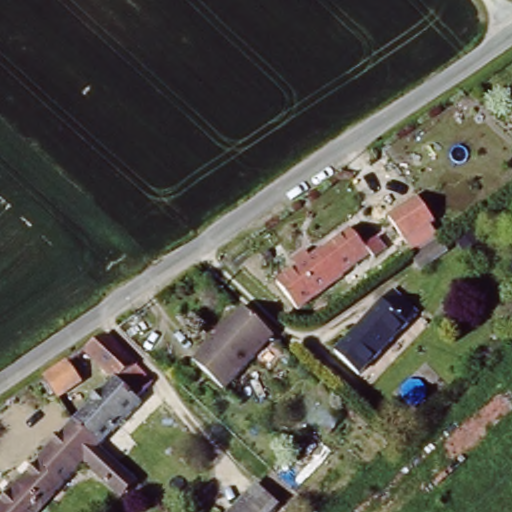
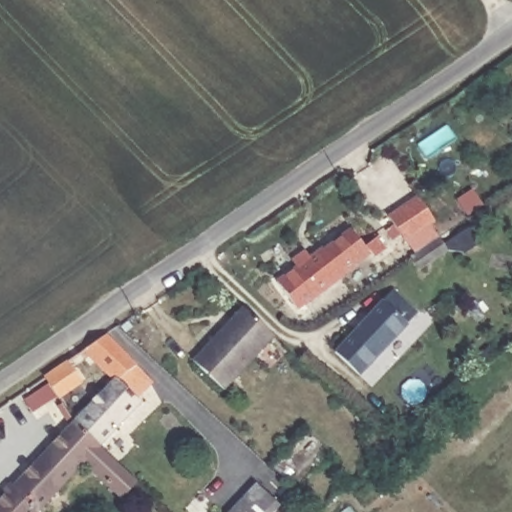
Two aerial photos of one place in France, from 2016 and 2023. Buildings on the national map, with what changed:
unchanged [(424,271),(415,257),(405,242),(388,215),(415,196),(435,221),(430,225),(441,237),(451,252),(424,271)]
unchanged [(373,258),(323,292),(330,301),(306,317),(272,267),(305,245),(310,252),(350,225),(373,258)]
unchanged [(393,289),(415,309),(363,368),(341,348),(393,289)]
unchanged [(226,390),(194,356),(248,304),(280,337),(226,390)]
unchanged [(37,379),(103,333),(138,365),(132,372),(140,379),(128,391),(137,400),(114,424),(92,448),(68,422),(108,380),(85,358),(71,373),(75,377),(51,398),(37,379)]
unchanged [(68,422),(92,448),(108,463),(128,482),(113,497),(78,464),(33,512),(0,512),(0,494),(68,422)]
unchanged [(281,509),(278,512),(228,512),(255,484),(281,509)]

